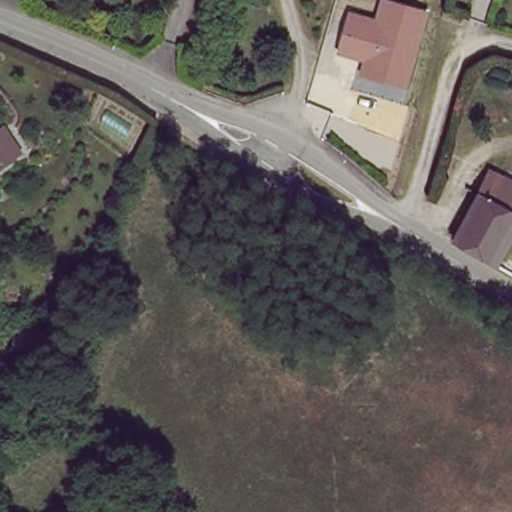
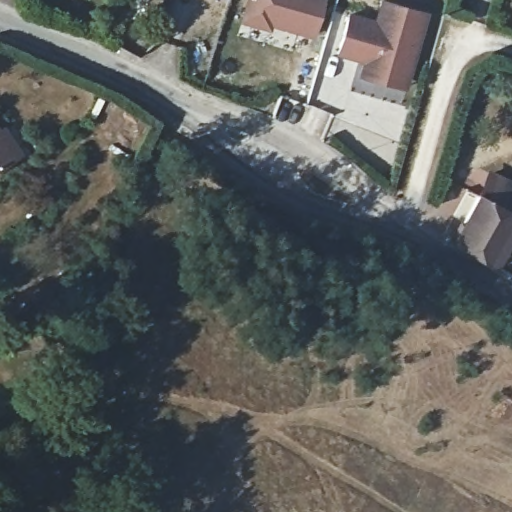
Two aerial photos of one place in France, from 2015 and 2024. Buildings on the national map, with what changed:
new [(239,22),(244,0),(325,0),(314,36),(271,25),(270,29),(239,22)]
unchanged [(375,17),(378,0),(387,0),(428,12),(408,88),(360,74),(363,60),(337,54),(346,10),(375,17)]
unchanged [(21,156),(0,172),(0,128),(21,156)]
unchanged [(495,166),(512,176),(512,211),(483,196),(495,166)]
unchanged [(494,255),(458,234),(476,193),(483,196),(512,211),(512,215),(494,255)]

